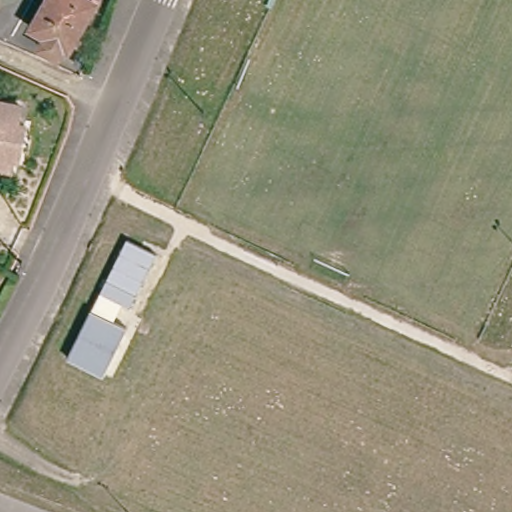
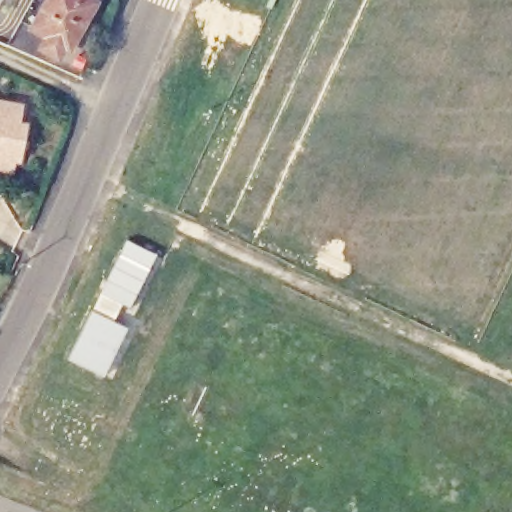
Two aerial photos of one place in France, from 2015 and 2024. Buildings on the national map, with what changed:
unchanged [(98,0),(67,55),(63,54),(59,62),(36,50),(41,41),(30,34),(48,0),(98,0)]
unchanged [(0,108),(20,112),(16,131),(24,132),(20,156),(15,155),(11,177),(0,175),(0,108)]
unchanged [(132,243),(161,256),(135,308),(106,295),(132,243)]
unchanged [(99,383),(69,367),(91,315),(123,332),(99,383)]

